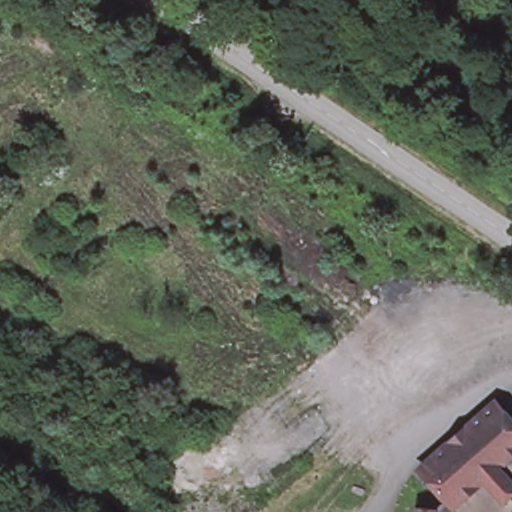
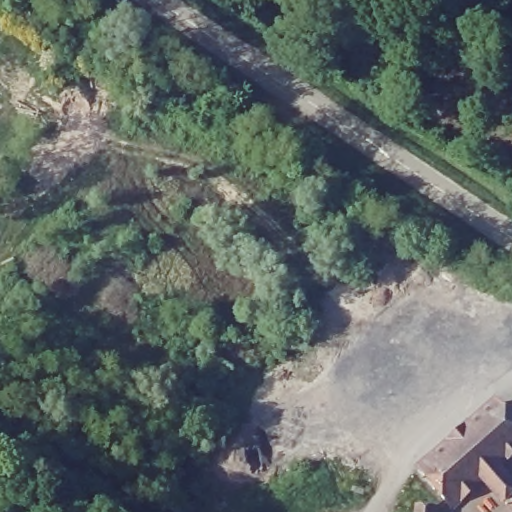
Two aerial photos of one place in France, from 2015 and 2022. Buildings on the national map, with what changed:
unchanged [(503,501),(485,482),(455,509),(451,506),(420,472),(495,403),(512,422),(512,456),(497,470),(512,486),(512,493),(503,501)]
unchanged [(424,512),(418,512),(418,511),(424,512)]

